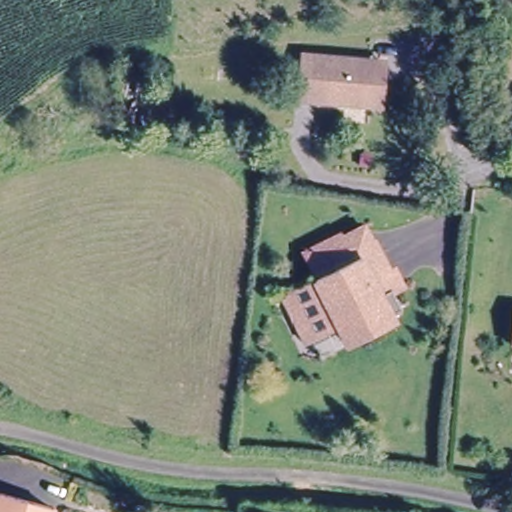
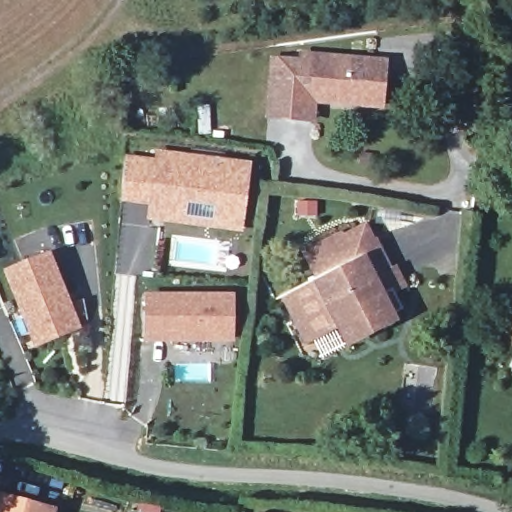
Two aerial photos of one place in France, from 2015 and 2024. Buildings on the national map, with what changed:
new [(299,100),(317,102),(315,124),(264,119),(269,56),(304,60),(299,100)]
unchanged [(382,110),(373,108),(299,100),(305,56),(377,65),(387,66),(382,110)]
new [(212,135),(197,135),(195,105),(209,104),(212,135)]
new [(212,130),(223,131),(223,137),(212,137),(212,135),(212,130)]
new [(145,221),(147,206),(120,203),(124,156),(154,160),(155,150),(251,162),(241,232),(145,221)]
unchanged [(406,288),(388,300),(399,323),(321,361),(283,296),(314,280),(299,251),(363,222),(406,288)]
new [(1,270),(49,251),(81,330),(33,348),(1,270)]
new [(144,294),(233,295),(234,343),(143,343),(144,294)]
unchanged [(51,512),(0,512),(0,490),(52,506),(51,512)]

